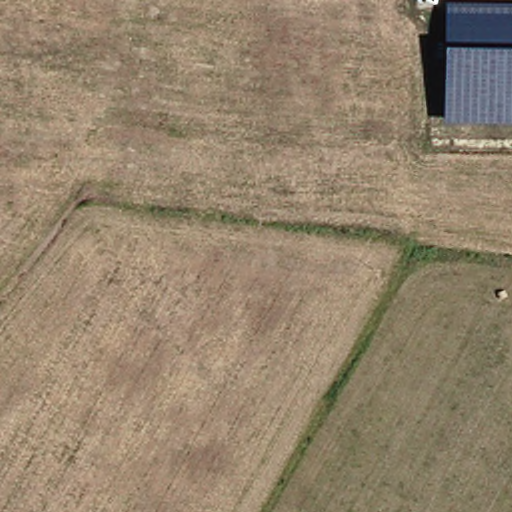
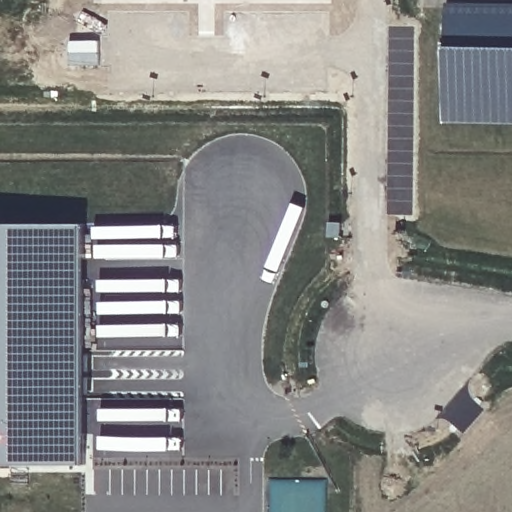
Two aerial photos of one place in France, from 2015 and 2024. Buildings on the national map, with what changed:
unchanged [(447,4),(512,5),(512,124),(443,124),(447,4)]
new [(85,467),(0,467),(0,225),(84,225),(85,467)]

